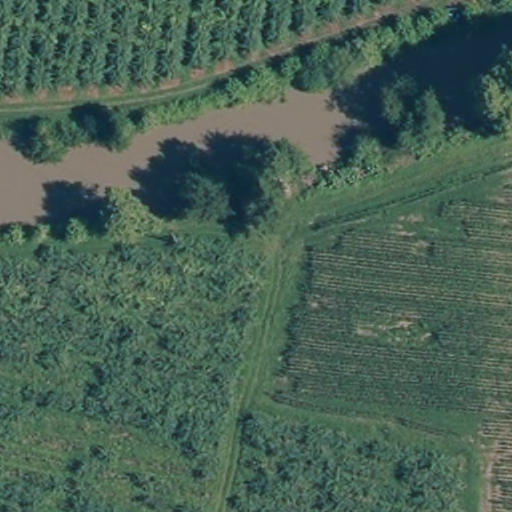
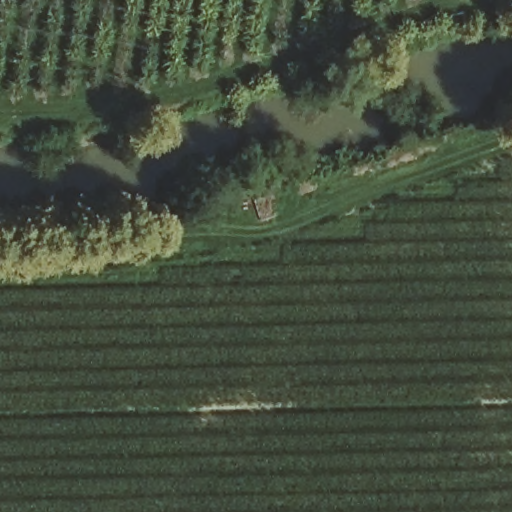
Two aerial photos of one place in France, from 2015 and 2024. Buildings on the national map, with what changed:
[]

